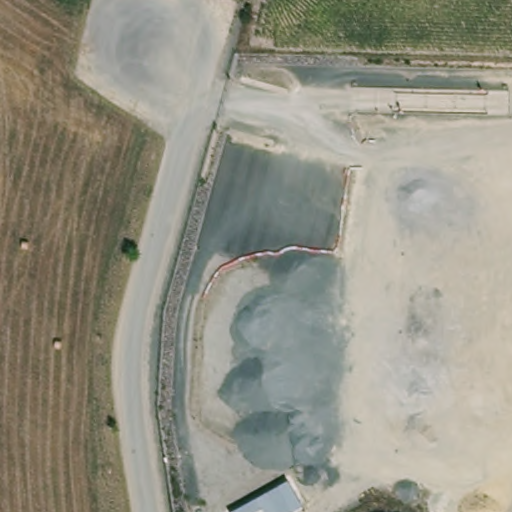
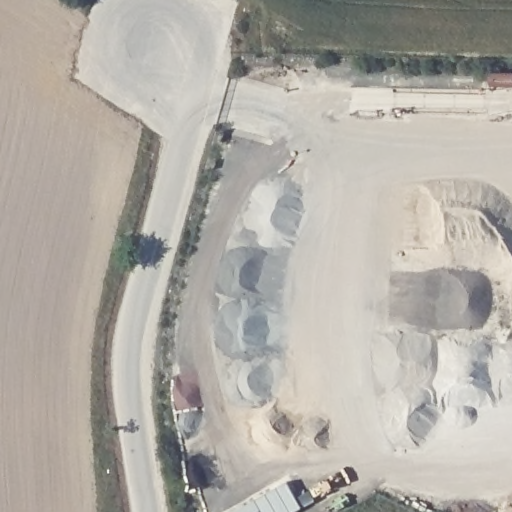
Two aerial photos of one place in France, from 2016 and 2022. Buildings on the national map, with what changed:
unchanged [(301,507),(292,512),(261,512),(261,511),(259,512),(231,512),(287,481),(301,507)]

